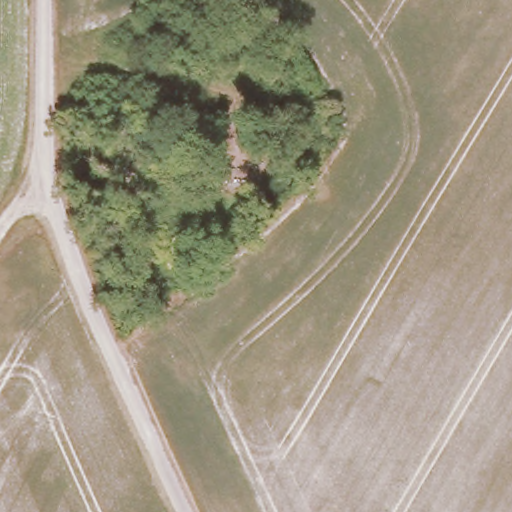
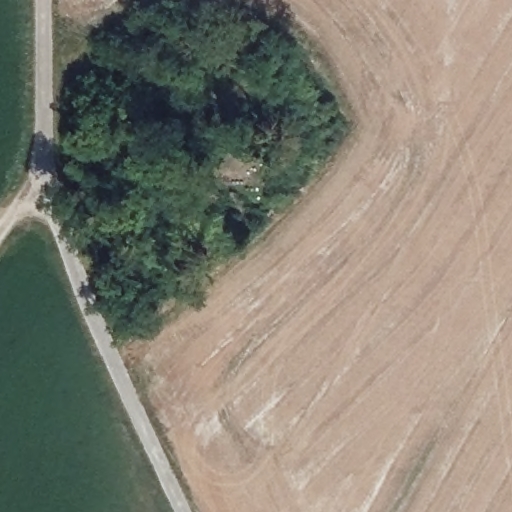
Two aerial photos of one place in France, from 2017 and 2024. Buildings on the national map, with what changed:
unchanged [(148,99),(298,113),(296,138),(146,123),(148,99)]

